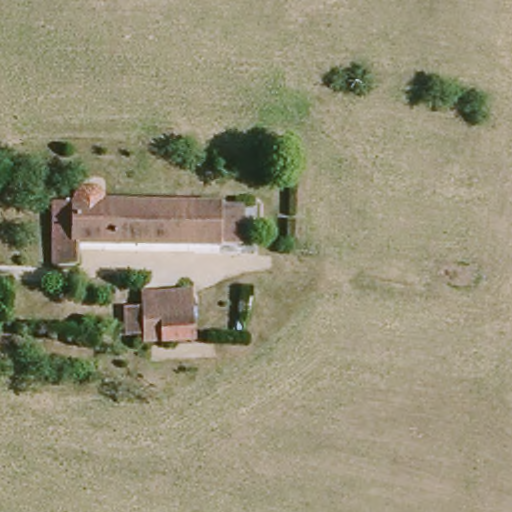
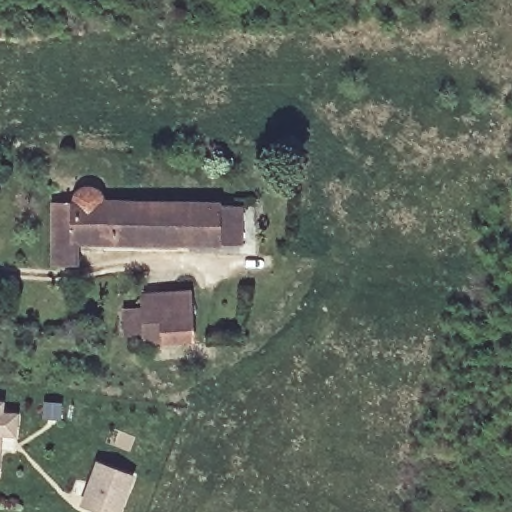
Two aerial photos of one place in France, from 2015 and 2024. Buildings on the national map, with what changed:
unchanged [(59,198),(80,200),(83,193),(87,189),(95,188),(101,189),(106,193),(110,199),(245,199),(245,240),(83,241),(84,264),(59,263),(59,198)]
unchanged [(156,303),(154,292),(201,290),(205,336),(140,339),(138,303),(156,303)]
new [(131,475),(115,512),(106,512),(80,501),(98,460),(131,475)]

